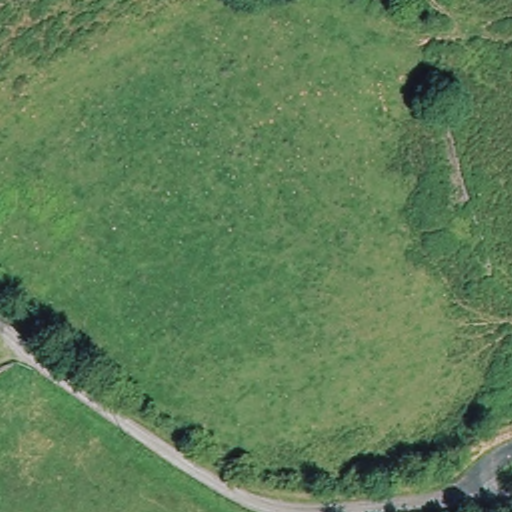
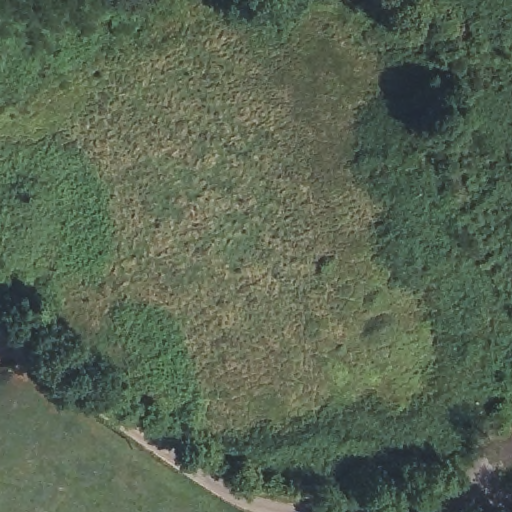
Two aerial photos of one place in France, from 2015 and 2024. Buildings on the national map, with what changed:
unchanged [(406,0),(397,16),(376,5),(379,0),(406,0)]

